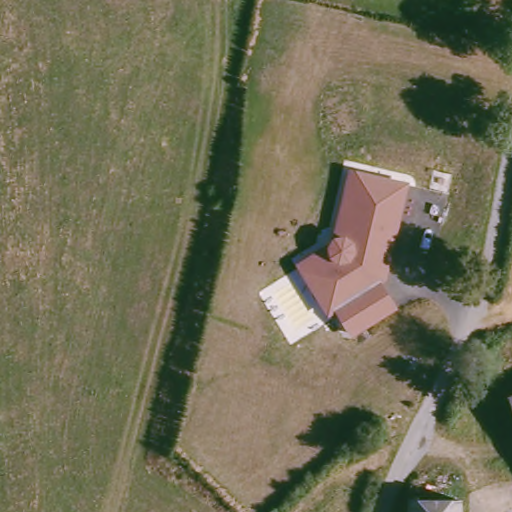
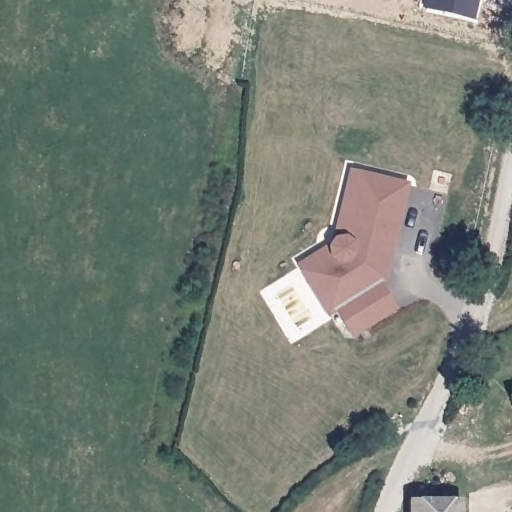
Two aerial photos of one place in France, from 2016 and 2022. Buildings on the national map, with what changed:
new [(428,0),(479,0),(475,20),(426,8),(428,0)]
unchanged [(336,312),(327,319),(297,267),(330,247),(335,239),(350,170),(408,184),(387,284),(383,287),(398,311),(352,340),(336,312)]
unchanged [(466,512),(419,512),(422,507),(465,503),(466,512)]

